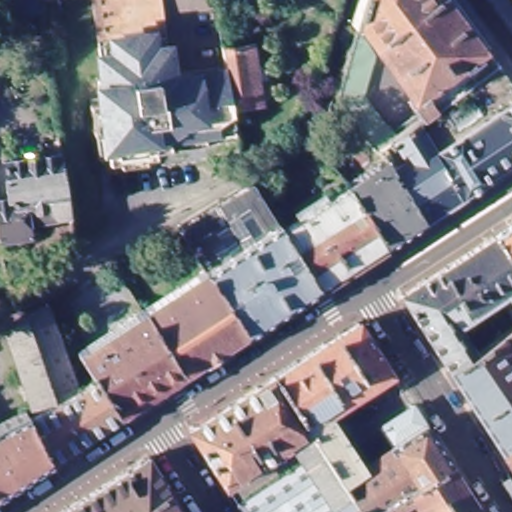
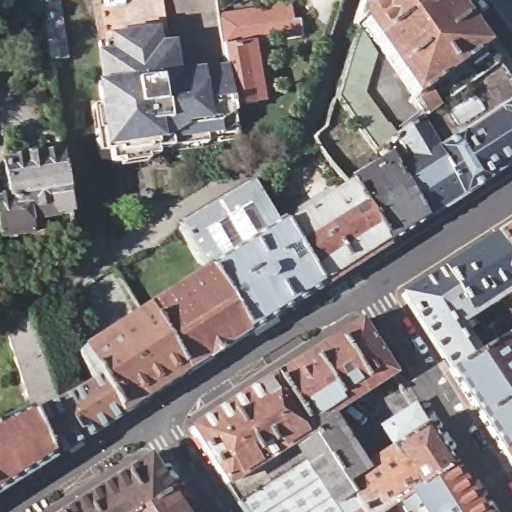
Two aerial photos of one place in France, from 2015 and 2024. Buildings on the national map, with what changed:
unchanged [(16,18),(14,2),(16,1),(16,0),(64,0),(65,5),(74,58),(64,60),(53,61),(50,42),(46,14),(16,18)]
unchanged [(250,2),(221,5),(221,0),(250,0),(250,2)]
unchanged [(378,40),(360,15),(364,0),(436,0),(378,40)]
unchanged [(423,119),(411,101),(417,96),(378,40),(436,0),(453,0),(502,64),(423,119)]
unchanged [(357,35),(355,32),(357,23),(380,57),(368,92),(399,136),(392,141),(386,145),(378,151),(376,152),(339,95),(357,35)]
unchanged [(175,145),(105,155),(97,94),(107,93),(104,76),(108,75),(106,57),(114,56),(111,43),(122,42),(121,39),(131,38),(149,35),(159,34),(159,37),(175,145)]
unchanged [(169,36),(171,48),(176,47),(180,77),(234,70),(238,102),(242,135),(175,145),(159,37),(169,36)]
unchanged [(230,43),(255,40),(263,99),(238,102),(234,70),(230,43)]
unchanged [(403,160),(395,146),(389,148),(386,145),(392,141),(399,136),(423,119),(502,64),(512,77),(512,164),(491,177),(493,180),(427,221),(390,169),(403,160)]
unchanged [(352,190),(348,183),(385,161),(390,169),(427,221),(390,245),(352,190)]
unchanged [(9,209),(4,173),(61,164),(71,225),(20,233),(22,248),(0,251),(0,210),(9,209)]
unchanged [(183,229),(257,184),(286,230),(321,289),(252,334),(215,276),(185,232),(183,229)]
unchanged [(286,230),(352,190),(390,245),(321,289),(286,230)]
unchanged [(512,266),(493,235),(512,224),(512,266)]
unchanged [(493,235),(512,266),(512,313),(502,298),(510,293),(506,287),(448,324),(470,357),(448,371),(400,295),(493,235)]
unchanged [(169,343),(151,317),(147,310),(158,304),(161,310),(215,276),(252,334),(188,374),(169,343)]
unchanged [(50,303),(73,366),(80,363),(83,370),(76,373),(82,390),(37,413),(7,326),(50,303)]
unchanged [(101,380),(86,357),(151,317),(169,343),(188,374),(122,416),(101,380)]
unchanged [(395,372),(328,413),(368,472),(397,453),(395,448),(397,446),(386,427),(416,406),(455,466),(420,490),(391,509),(387,512),(367,512),(277,376),(362,322),(395,372)]
unchanged [(470,357),(512,330),(512,356),(505,360),(512,372),(512,469),(448,371),(470,357)]
unchanged [(247,512),(193,429),(277,376),(367,512),(247,512)]
unchanged [(37,413),(82,390),(89,386),(101,380),(122,416),(52,459),(32,416),(37,413)]
unchanged [(29,409),(32,416),(52,459),(0,493),(0,423),(29,409)]
unchanged [(169,490),(135,512),(58,512),(146,456),(169,490)]
unchanged [(455,466),(484,512),(433,512),(420,490),(455,466)]
unchanged [(135,512),(169,490),(183,512),(135,512)]
unchanged [(393,512),(387,512),(391,509),(393,512)]

